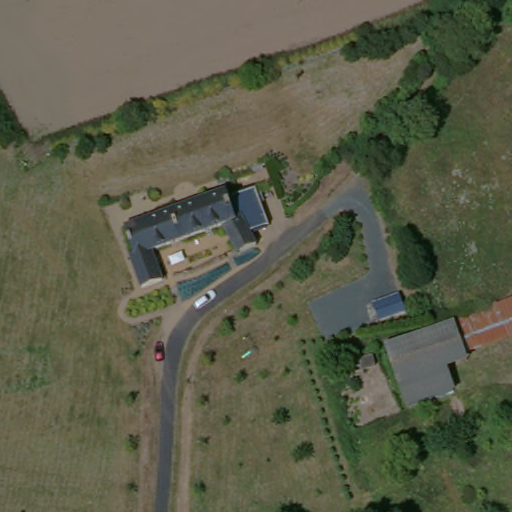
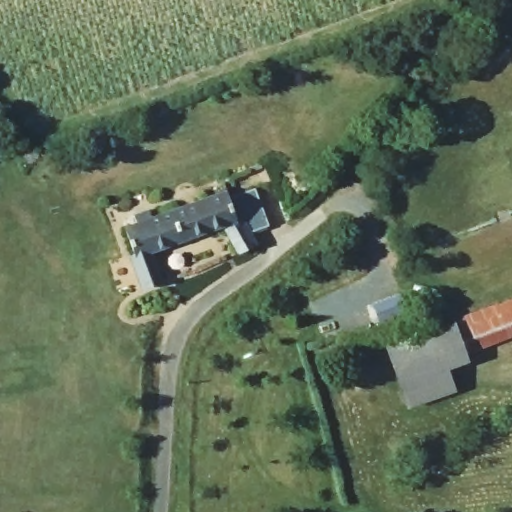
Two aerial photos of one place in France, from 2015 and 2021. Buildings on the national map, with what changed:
unchanged [(252,249),(235,257),(224,228),(154,254),(165,285),(142,294),(129,260),(134,259),(122,230),(222,189),(225,196),(233,193),(249,186),(265,224),(253,233),(258,248),(252,249)]
unchanged [(470,358),(452,362),(433,331),(477,308),(511,301),(512,304),(512,331),(467,346),(470,358)]
unchanged [(512,301),(512,304),(511,301),(512,301)]
unchanged [(455,391),(408,404),(391,345),(426,335),(433,331),(452,362),(455,391)]
unchanged [(378,365),(358,369),(357,357),(377,354),(378,365)]

